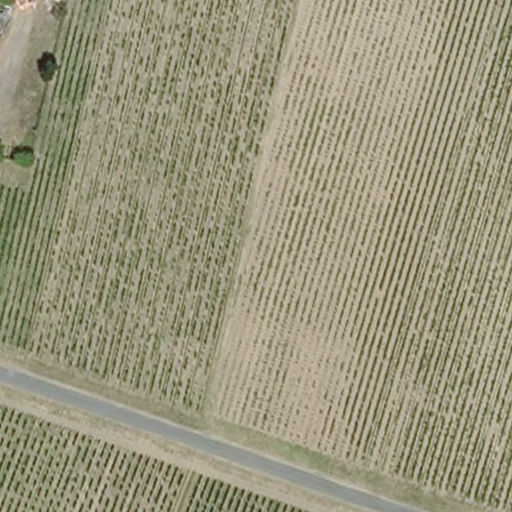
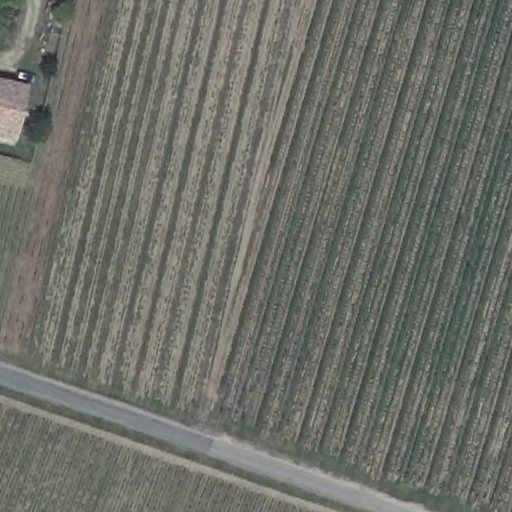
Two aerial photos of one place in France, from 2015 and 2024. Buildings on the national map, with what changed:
new [(13,142),(0,139),(0,79),(26,85),(13,142)]

